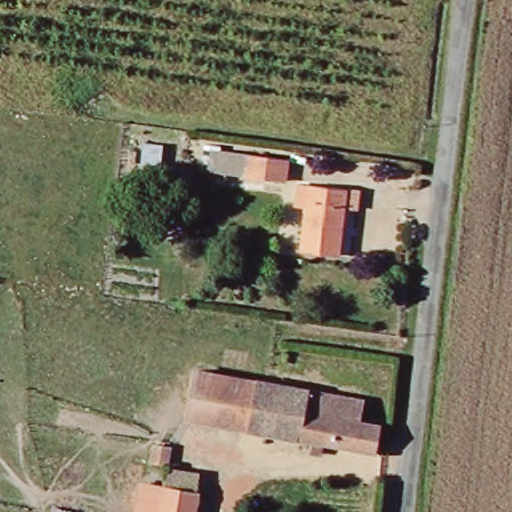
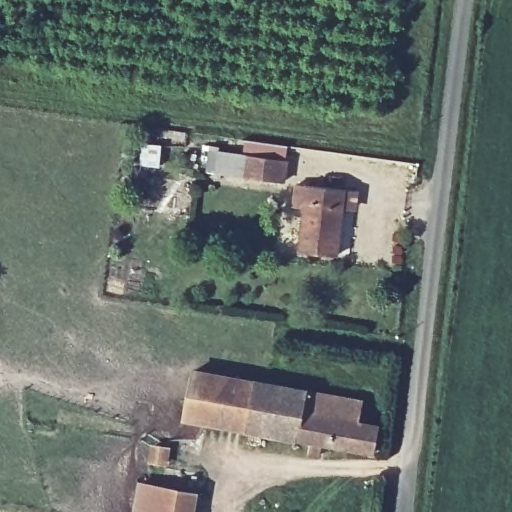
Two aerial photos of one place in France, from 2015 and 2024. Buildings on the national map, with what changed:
unchanged [(236,155),(277,161),(273,182),(232,176),(236,155)]
unchanged [(333,257),(301,252),(312,189),(344,194),(333,257)]
unchanged [(194,372),(364,402),(360,424),(377,427),(375,455),(185,422),(194,372)]
unchanged [(154,448),(169,452),(165,470),(150,467),(154,448)]
unchanged [(163,491),(166,475),(196,481),(190,512),(135,512),(140,487),(163,491)]

